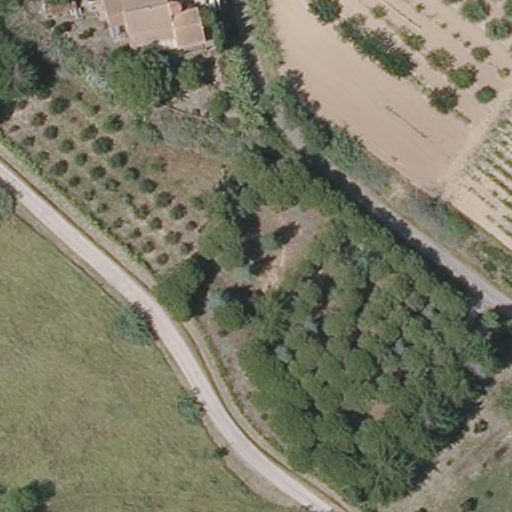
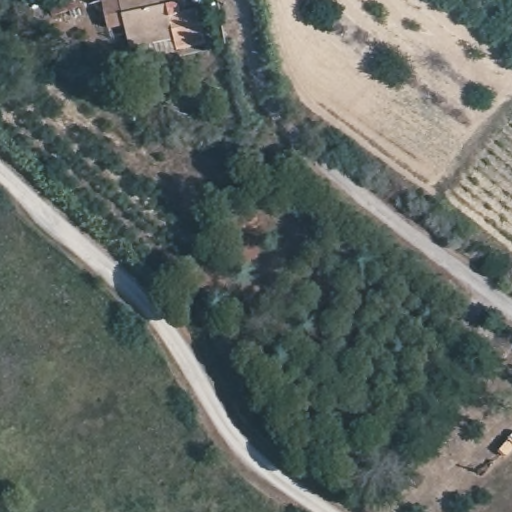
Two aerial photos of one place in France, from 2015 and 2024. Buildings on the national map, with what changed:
unchanged [(200,36),(143,49),(122,43),(117,18),(100,23),(94,0),(166,0),(170,5),(190,0),(200,36)]

